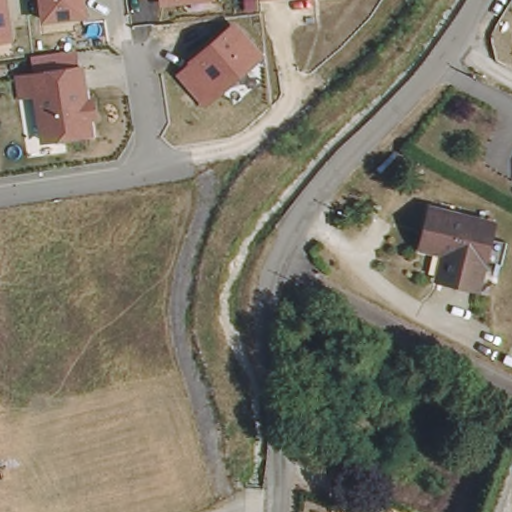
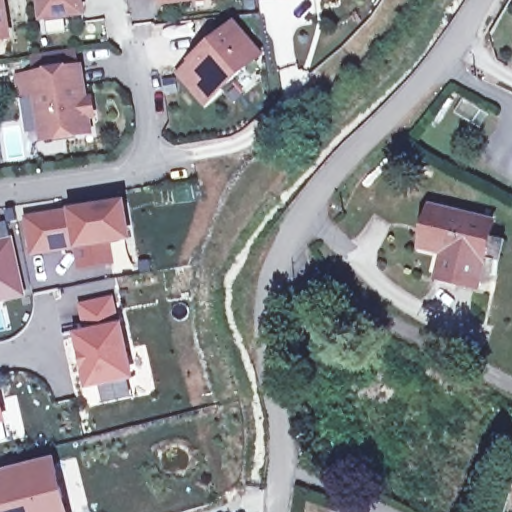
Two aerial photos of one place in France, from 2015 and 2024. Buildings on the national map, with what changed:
unchanged [(14,41),(0,44),(0,0),(7,0),(14,41)]
unchanged [(39,0),(85,0),(87,18),(42,24),(39,0)]
unchanged [(161,0),(216,0),(217,0),(162,8),(161,0)]
unchanged [(258,0),(272,0),(259,2),(258,0)]
unchanged [(236,20),(267,55),(205,108),(176,75),(236,20)]
unchanged [(84,65),(90,97),(96,95),(100,121),(94,123),(97,136),(41,143),(34,97),(15,100),(14,75),(84,65)]
new [(126,236),(107,239),(111,258),(80,263),(77,241),(32,249),(27,215),(120,199),(126,236)]
unchanged [(440,273),(424,269),(429,247),(411,243),(420,206),(482,220),(478,237),(490,239),(477,290),(460,286),(438,282),(440,273)]
new [(5,222),(22,294),(0,299),(0,223),(5,222)]
new [(86,386),(75,334),(85,332),(79,304),(107,298),(113,327),(119,326),(130,377),(86,386)]
new [(2,420),(0,421),(0,414),(2,420)]
new [(71,512),(0,512),(0,473),(55,457),(71,512)]

